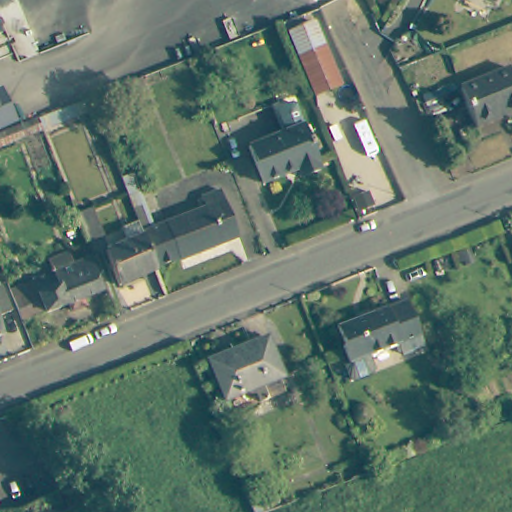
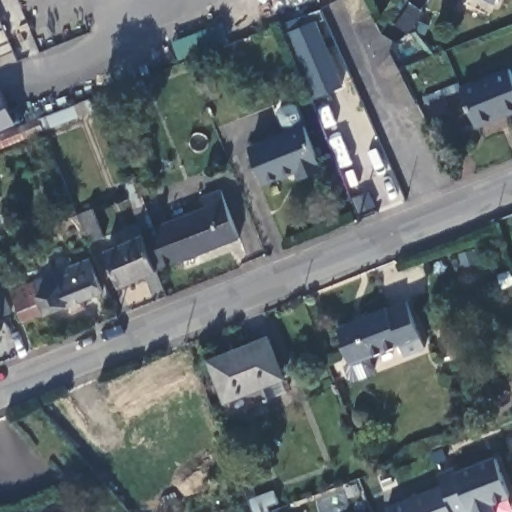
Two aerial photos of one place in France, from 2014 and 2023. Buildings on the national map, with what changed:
unchanged [(497,0),(495,4),(487,0),(497,0)]
unchanged [(292,36),(316,26),(340,89),(317,97),(292,36)]
unchanged [(460,87),(506,67),(512,80),(512,109),(475,125),(460,87)]
unchanged [(142,90),(114,101),(110,88),(137,78),(142,90)]
unchanged [(0,132),(0,90),(16,126),(20,124),(24,136),(0,145),(0,132)]
unchanged [(39,129),(35,118),(85,97),(90,109),(39,129)]
unchanged [(296,175),(293,166),(260,179),(246,145),(300,123),(314,156),(312,157),(316,167),(296,175)]
unchanged [(160,227),(144,233),(140,222),(121,178),(139,172),(160,227)]
unchanged [(160,227),(206,208),(201,197),(221,189),(240,236),(181,260),(180,257),(157,267),(144,233),(160,227)]
unchanged [(90,207),(101,237),(85,244),(72,214),(90,207)]
unchanged [(120,285),(107,252),(127,244),(121,231),(140,222),(144,233),(157,267),(159,270),(120,285)]
unchanged [(49,275),(44,263),(65,254),(70,267),(85,262),(96,292),(77,300),(80,307),(67,312),(65,304),(17,322),(6,291),(49,275)]
unchanged [(0,295),(7,312),(0,314),(0,295)]
unchanged [(405,298),(424,346),(402,355),(398,344),(370,355),(376,371),(352,380),(346,364),(348,363),(342,347),(345,346),(337,326),(355,319),(356,321),(367,316),(365,311),(384,304),(385,306),(405,298)]
unchanged [(225,400),(209,363),(268,340),(282,377),(278,379),(284,392),(264,400),(265,402),(235,414),(225,400)]
new [(386,506),(443,484),(437,474),(455,467),(457,472),(496,456),(512,497),(495,504),(498,512),(473,512),(472,511),(470,512),(389,512),(386,506)]
unchanged [(265,494),(270,507),(260,511),(260,512),(246,512),(242,503),(265,494)]

